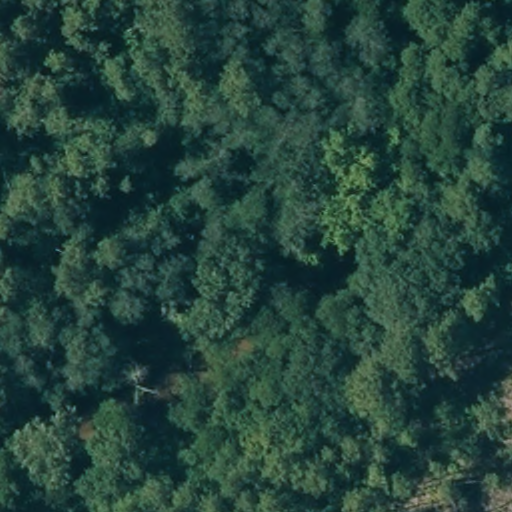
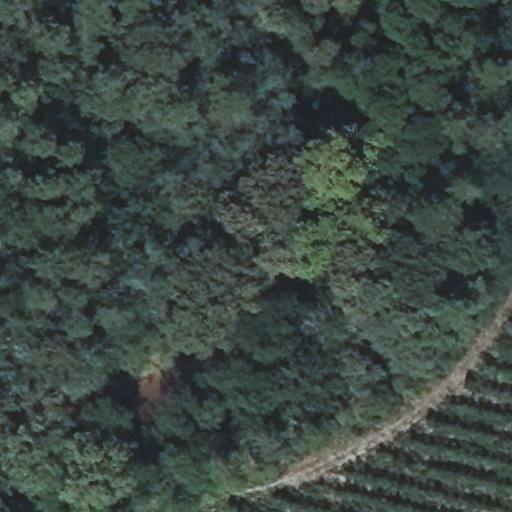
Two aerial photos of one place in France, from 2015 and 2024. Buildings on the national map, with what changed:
[]

